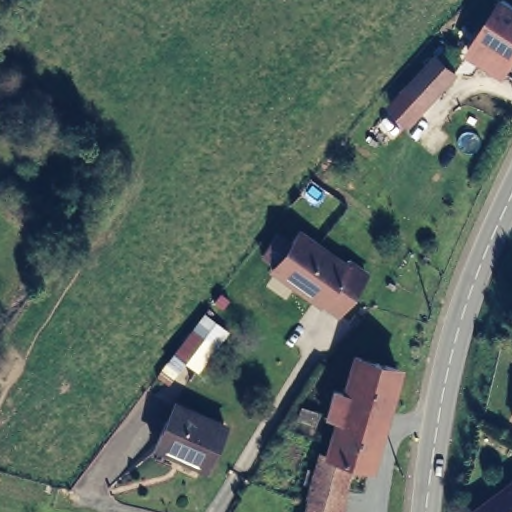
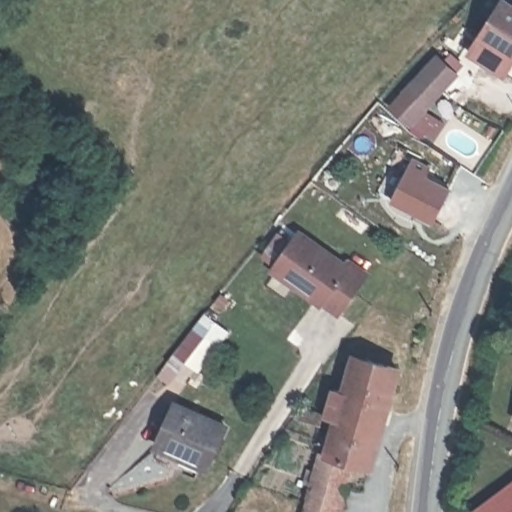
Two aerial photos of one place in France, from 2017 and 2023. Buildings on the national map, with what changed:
unchanged [(510,69),(486,55),(489,49),(478,44),(504,0),(512,0),(512,66),(510,69)]
unchanged [(444,54),(463,70),(439,95),(420,117),(403,101),(421,80),(444,54)]
new [(390,202),(408,170),(414,159),(431,166),(427,175),(451,188),(433,223),(390,202)]
unchanged [(297,223),(345,261),(348,257),(368,273),(334,317),(268,269),(297,223)]
unchanged [(371,466),(356,461),(342,512),(308,512),(324,447),(330,448),(340,408),(329,405),(333,390),(346,392),(356,355),(399,367),(371,466)]
unchanged [(172,404),(222,426),(206,466),(156,444),(172,404)]
unchanged [(476,512),(512,483),(512,512),(476,512)]
unchanged [(308,512),(295,512),(296,510),(308,512)]

